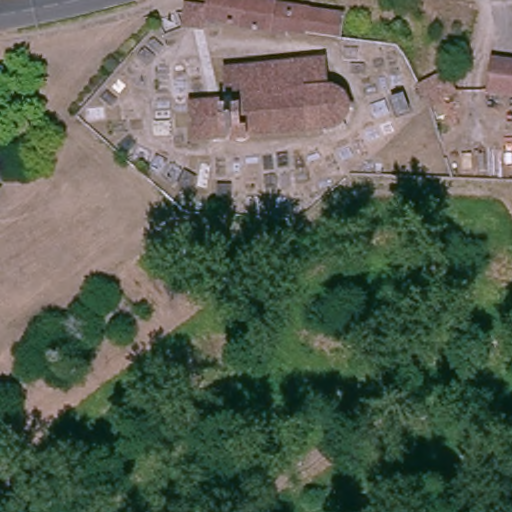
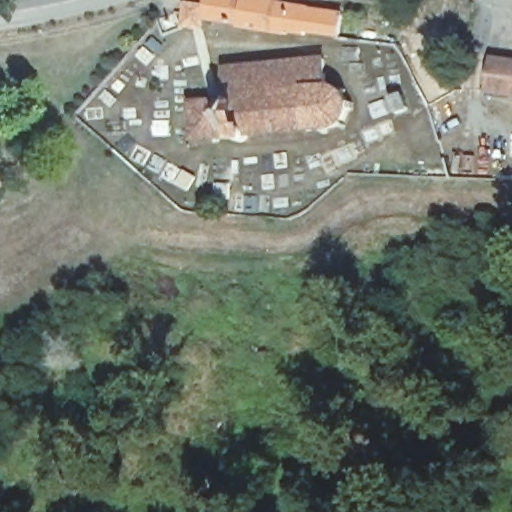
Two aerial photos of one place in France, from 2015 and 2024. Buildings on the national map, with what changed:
unchanged [(207,5),(207,0),(272,0),(272,4),(305,6),(303,10),(338,12),(336,37),(303,33),(303,37),(281,32),(281,35),(237,27),(238,22),(206,18),(206,27),(189,26),(188,16),(190,4),(207,5)]
unchanged [(228,102),(226,70),(272,63),(272,57),(280,57),(280,62),(302,60),(307,55),(316,59),(328,59),(328,87),(342,89),(346,85),(351,90),(345,97),(351,105),(357,105),(357,112),(352,114),(347,121),(350,127),(343,132),(339,126),(331,130),(332,135),(323,137),(321,131),(251,135),(245,145),(234,145),(231,137),(228,102)]
unchanged [(480,90),(482,60),(512,62),(512,93),(480,90)]
unchanged [(419,86),(446,70),(453,88),(426,101),(419,86)]
unchanged [(196,138),(195,102),(228,102),(231,137),(196,138)]

